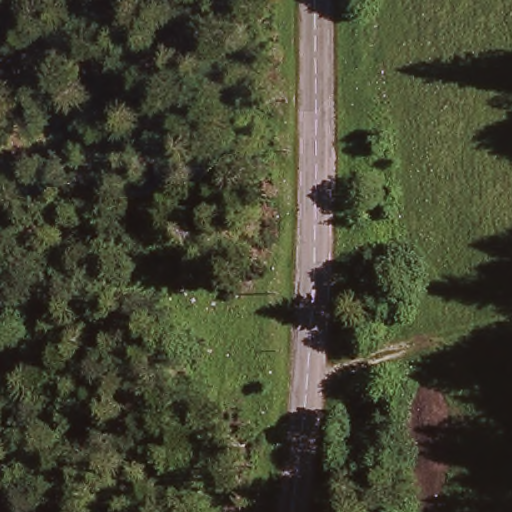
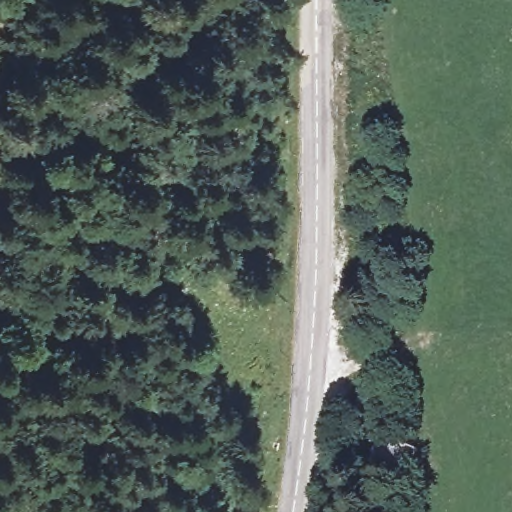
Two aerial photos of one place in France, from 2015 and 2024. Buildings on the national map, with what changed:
[]

